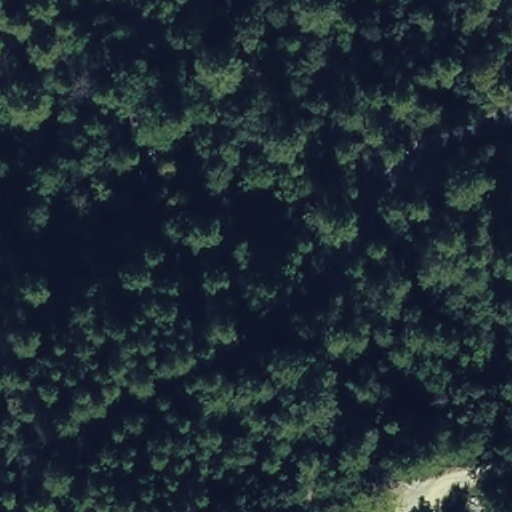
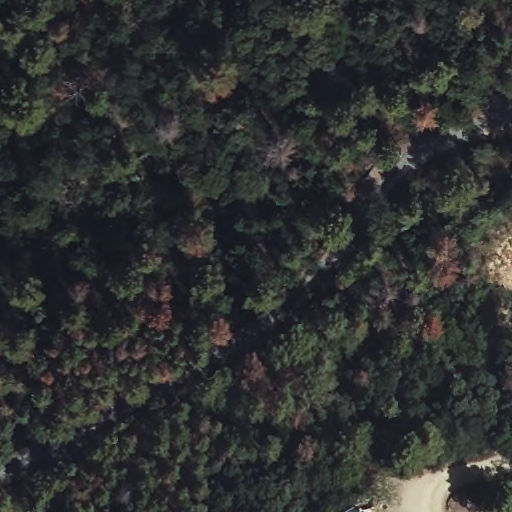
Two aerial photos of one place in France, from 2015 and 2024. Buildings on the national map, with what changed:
unchanged [(363,512),(349,512),(360,506),(363,512)]

